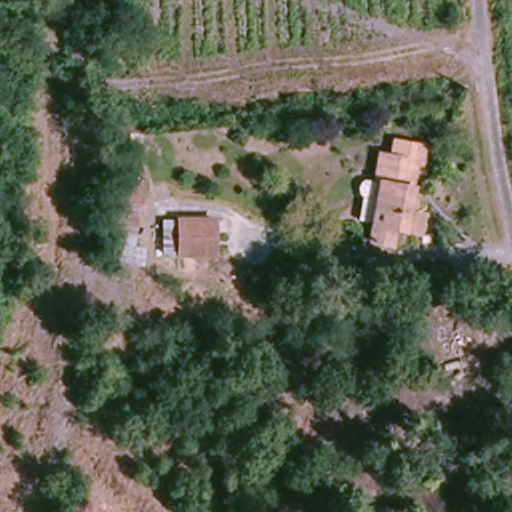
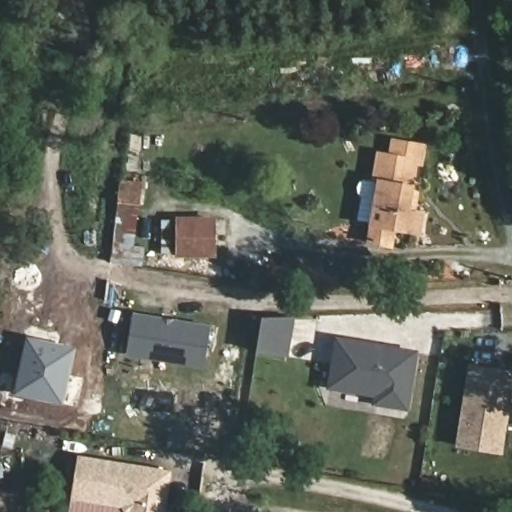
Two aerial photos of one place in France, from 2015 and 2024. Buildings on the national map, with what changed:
unchanged [(365,240),(370,223),(379,183),(372,182),(377,157),(389,159),(392,143),(418,149),(416,164),(407,163),(397,210),(409,213),(407,232),(386,227),(383,245),(365,240)]
unchanged [(212,219),(212,260),(158,258),(160,217),(212,219)]
new [(128,356),(135,313),(210,325),(203,368),(128,356)]
new [(288,355),(256,354),(261,315),(294,317),(288,355)]
new [(14,393),(26,338),(75,347),(64,404),(14,393)]
new [(407,409),(375,404),(377,396),(324,388),(332,339),(419,351),(407,409)]
new [(499,454),(454,448),(468,364),(512,371),(512,382),(499,454)]
new [(165,512),(125,512),(122,508),(69,499),(77,456),(171,470),(165,512)]

